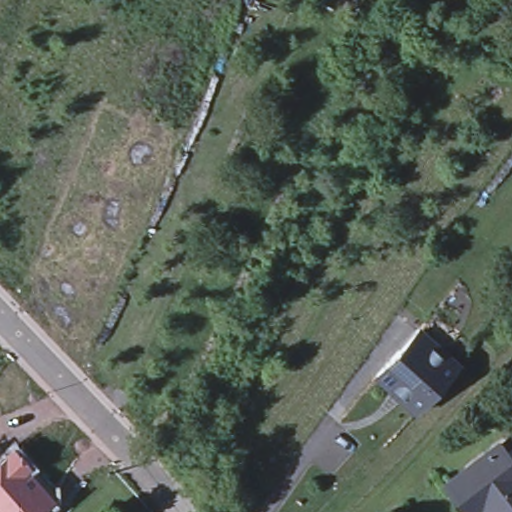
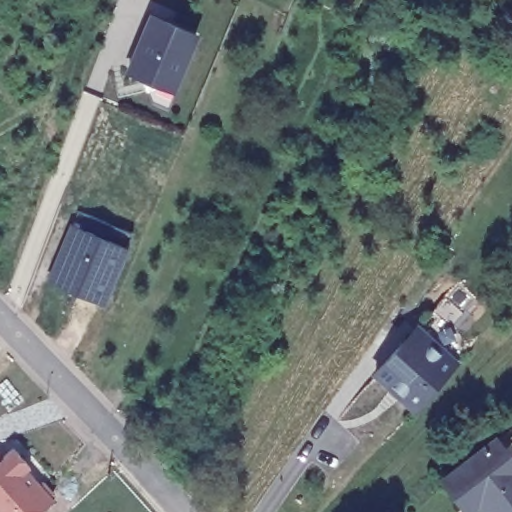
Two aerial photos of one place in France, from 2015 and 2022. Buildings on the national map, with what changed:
new [(198,31),(167,108),(152,102),(141,78),(125,71),(149,12),(198,31)]
new [(131,234),(126,245),(130,247),(105,305),(46,281),(71,222),(73,223),(77,211),(131,234)]
unchanged [(412,326),(453,363),(411,410),(370,373),(412,326)]
unchanged [(47,512),(0,512),(0,445),(3,448),(15,438),(40,468),(35,472),(41,480),(53,478),(58,486),(59,501),(47,512)]
unchanged [(442,479),(495,438),(512,460),(512,512),(489,512),(490,511),(480,499),(466,510),(458,500),(442,479)]

